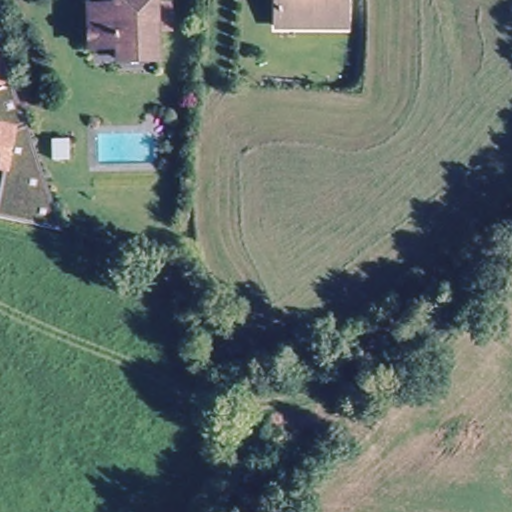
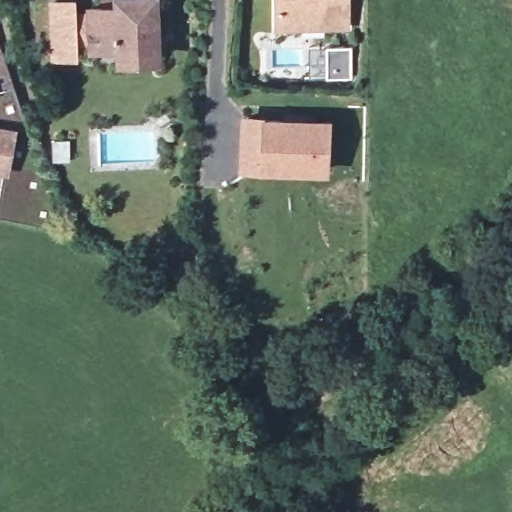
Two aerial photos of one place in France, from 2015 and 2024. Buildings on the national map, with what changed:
unchanged [(88,52),(86,9),(100,8),(100,0),(154,0),(154,3),(167,3),(169,27),(155,28),(156,52),(156,60),(119,62),(118,55),(118,51),(88,52)]
unchanged [(298,28),(274,27),(275,0),(344,0),(344,14),(344,28),(298,28)]
unchanged [(0,218),(0,192),(4,171),(13,130),(0,128),(0,53),(60,229),(0,218)]
new [(327,175),(258,172),(237,172),(239,114),(260,114),(330,118),(327,175)]
unchanged [(4,171),(0,170),(0,128),(13,130),(4,171)]

